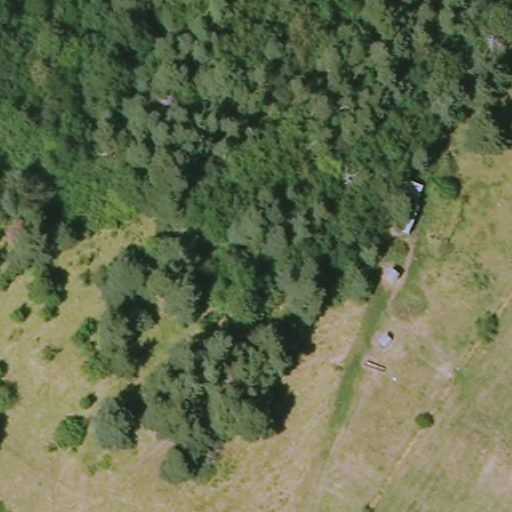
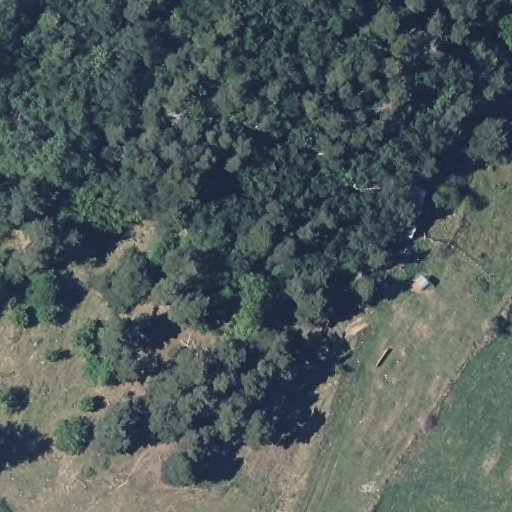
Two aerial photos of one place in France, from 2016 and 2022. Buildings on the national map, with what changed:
unchanged [(404,185),(421,189),(415,220),(405,238),(395,231),(404,185)]

